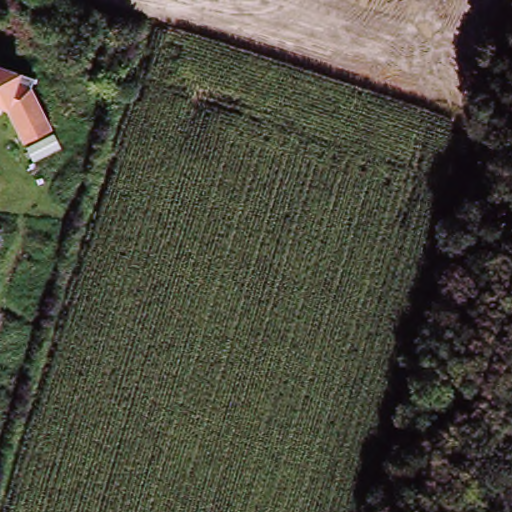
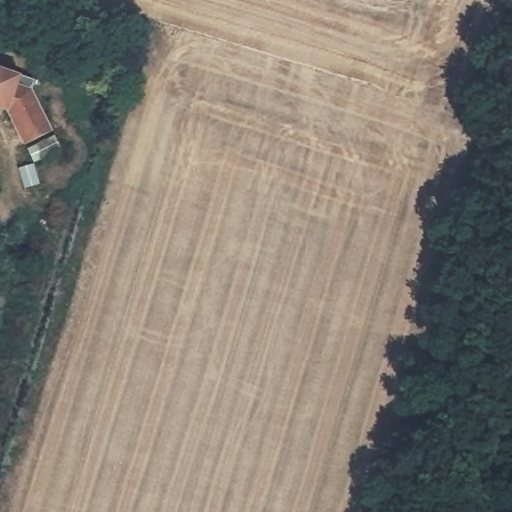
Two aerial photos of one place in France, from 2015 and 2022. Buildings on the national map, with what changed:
unchanged [(26,85),(40,90),(60,132),(26,149),(5,106),(0,104),(0,64),(30,75),(26,85)]

